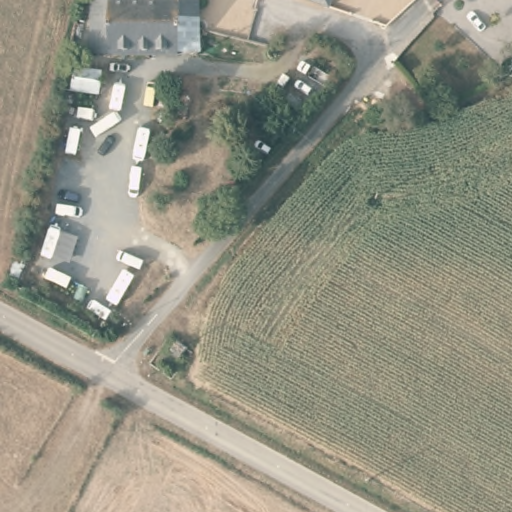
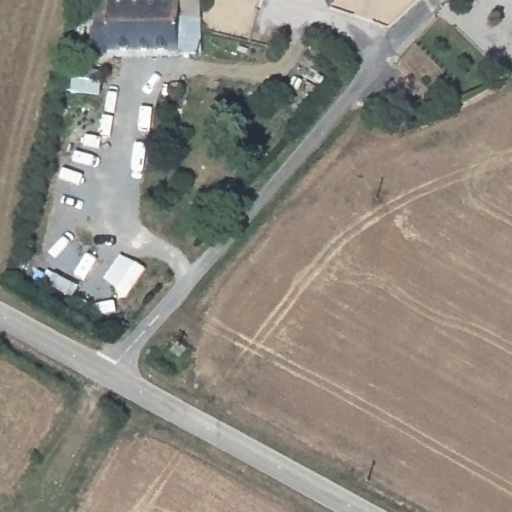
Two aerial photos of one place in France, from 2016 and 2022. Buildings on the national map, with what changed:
unchanged [(178,53),(92,54),(92,1),(177,0),(200,0),(200,22),(200,30),(200,53),(178,53)]
unchanged [(309,0),(332,0),(329,7),(309,0)]
unchanged [(65,86),(61,82),(63,74),(68,70),(69,66),(102,72),(100,94),(66,90),(65,86)]

